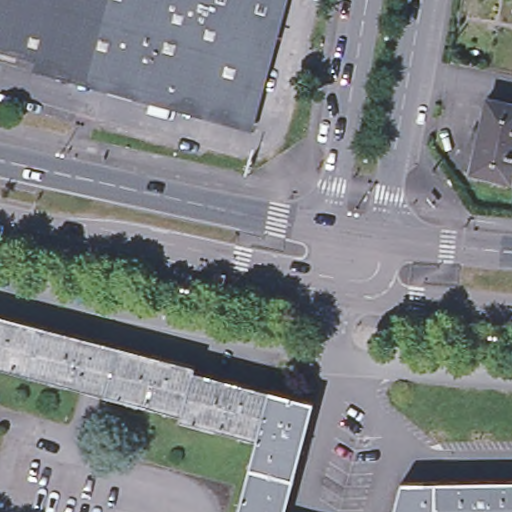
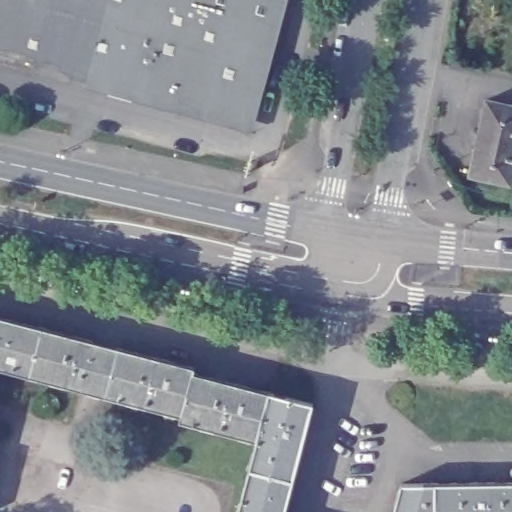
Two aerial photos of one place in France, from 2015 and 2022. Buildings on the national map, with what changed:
unchanged [(244,119),(0,55),(0,0),(276,0),(244,119)]
unchanged [(511,185),(470,177),(485,101),(512,106),(512,182),(511,185)]
unchanged [(28,374),(0,366),(0,319),(40,330),(28,374)]
unchanged [(40,330),(116,349),(105,393),(28,374),(40,330)]
unchanged [(116,349),(195,369),(193,373),(268,392),(256,437),(179,417),(180,413),(105,393),(116,349)]
unchanged [(268,392),(313,404),(284,512),(237,512),(256,437),(268,392)]
unchanged [(512,483),(512,512),(394,512),(401,484),(512,483)]

